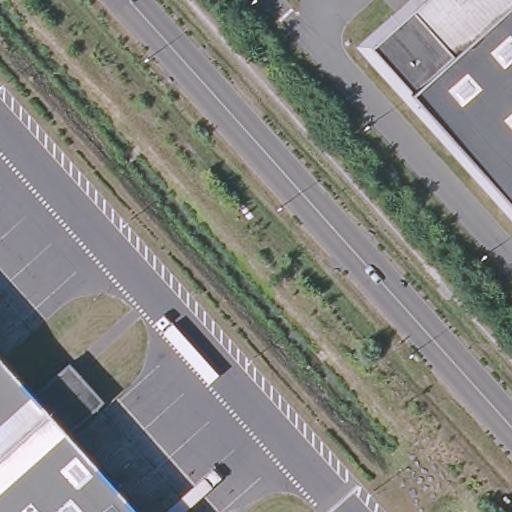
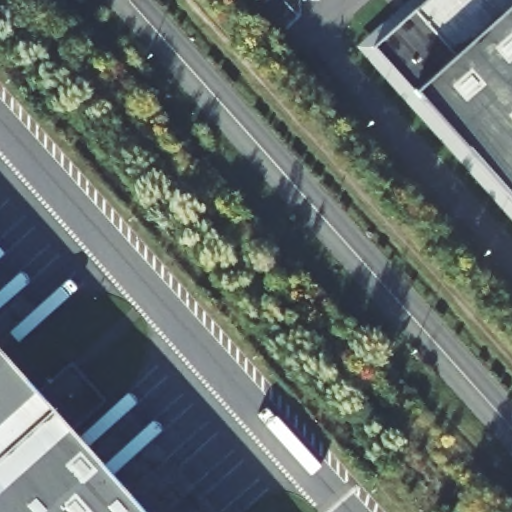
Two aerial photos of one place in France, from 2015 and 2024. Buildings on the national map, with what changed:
unchanged [(378,48),(432,0),(512,0),(512,198),(378,48)]
unchanged [(75,372),(110,411),(76,442),(139,512),(0,512),(0,357),(41,402),(75,372)]

